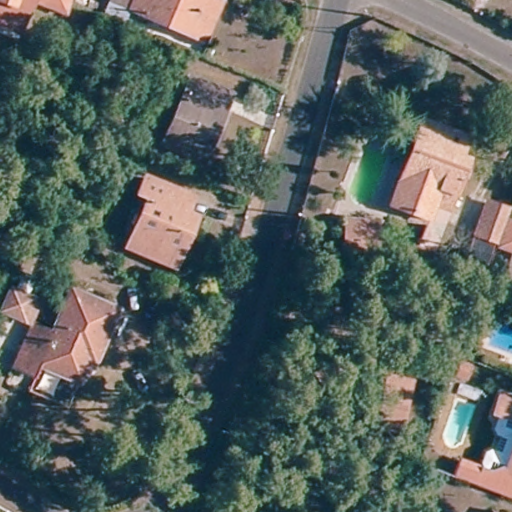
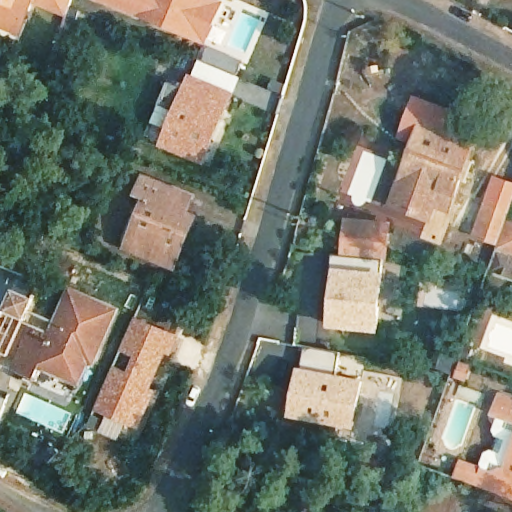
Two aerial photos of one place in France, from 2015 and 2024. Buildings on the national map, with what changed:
unchanged [(0,0),(23,0),(18,12),(13,26),(0,20),(0,0)]
unchanged [(40,0),(65,0),(63,10),(40,0)]
unchanged [(102,12),(107,0),(213,0),(219,2),(202,42),(125,10),(120,20),(102,12)]
unchanged [(203,162),(164,146),(191,79),(230,95),(203,162)]
unchanged [(462,130),(456,151),(463,153),(448,204),(430,197),(426,211),(389,199),(405,145),(409,136),(416,114),(462,130)]
unchanged [(175,268),(127,249),(146,199),(138,195),(144,179),(181,193),(192,197),(186,213),(195,217),(175,268)]
unchanged [(505,261),(512,242),(493,235),(496,227),(472,219),(481,190),(506,199),(503,208),(512,211),(512,263),(505,261)]
new [(381,219),(381,233),(391,234),(390,259),(386,259),(386,269),(381,332),(329,327),(334,266),(335,253),(340,254),(342,216),(381,219)]
demolished [(336,224),(367,226),(374,227),(373,246),(335,242),(336,224)]
new [(8,285),(0,301),(0,264),(17,271),(10,287),(8,285)]
unchanged [(10,287),(19,267),(33,273),(25,292),(28,294),(19,316),(0,308),(0,301),(8,285),(10,287)]
new [(28,294),(25,292),(31,277),(41,282),(9,356),(0,351),(0,308),(19,316),(28,294)]
unchanged [(91,358),(85,356),(75,376),(36,360),(31,372),(11,362),(28,322),(48,329),(68,287),(113,307),(91,358)]
new [(182,333),(173,356),(167,353),(153,388),(156,390),(140,427),(95,411),(136,315),(182,333)]
new [(343,351),(340,372),(365,379),(357,428),(290,416),(300,367),(306,343),(343,351)]
demolished [(394,422),(372,417),(384,367),(406,373),(394,422)]
unchanged [(488,407),(495,385),(512,391),(512,415),(488,407)]
unchanged [(456,451),(490,463),(502,460),(512,427),(512,493),(450,470),(456,451)]

